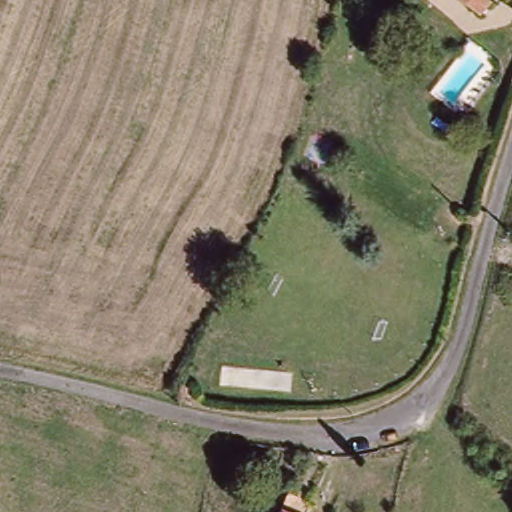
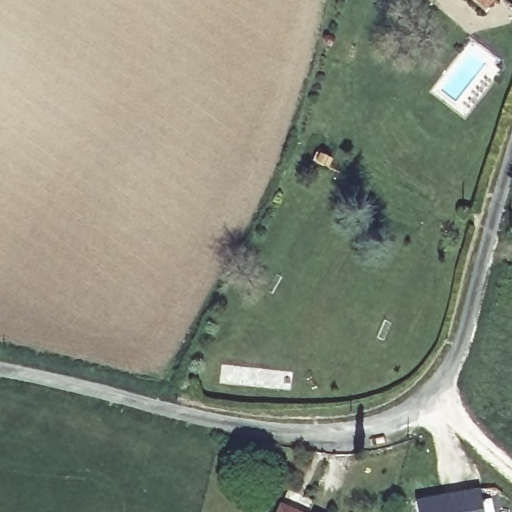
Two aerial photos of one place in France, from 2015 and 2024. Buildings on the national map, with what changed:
unchanged [(484,6),(476,0),(489,0),(484,6)]
new [(480,488),(484,512),(415,512),(413,500),(480,488)]
unchanged [(310,510),(309,512),(283,512),(286,502),(310,510)]

